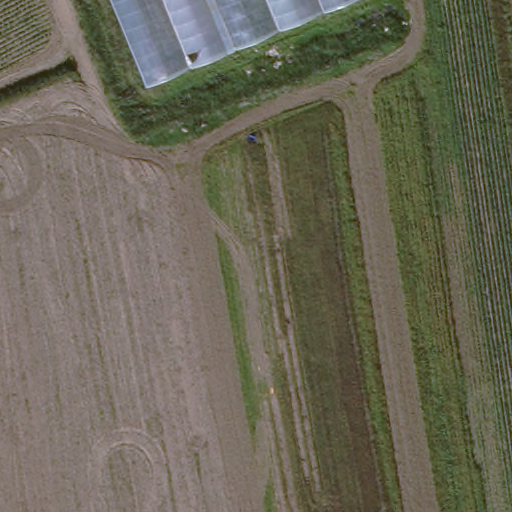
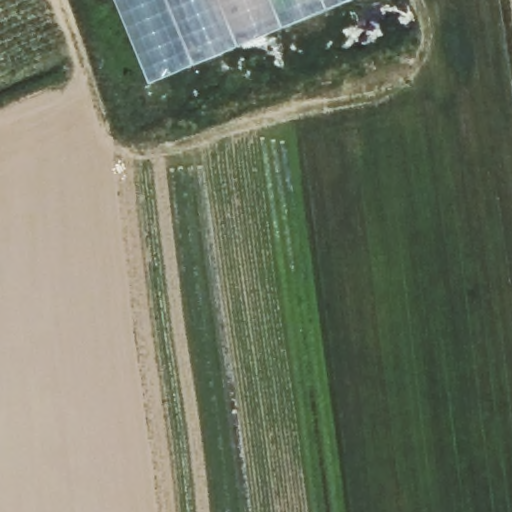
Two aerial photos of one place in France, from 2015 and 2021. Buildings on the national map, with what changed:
unchanged [(151,89),(131,43),(112,0),(350,0),(251,44),(151,89)]

